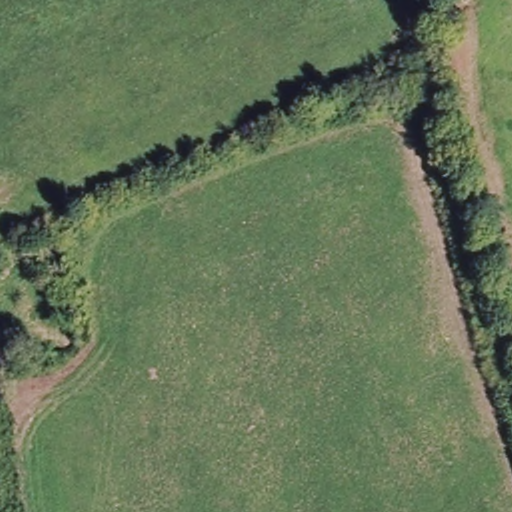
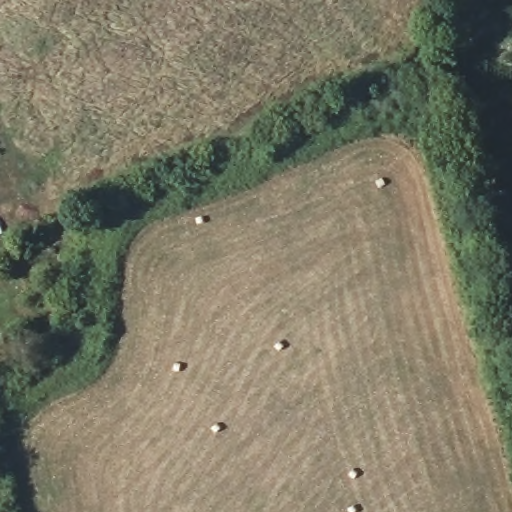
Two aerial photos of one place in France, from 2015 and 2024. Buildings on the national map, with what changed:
[]

